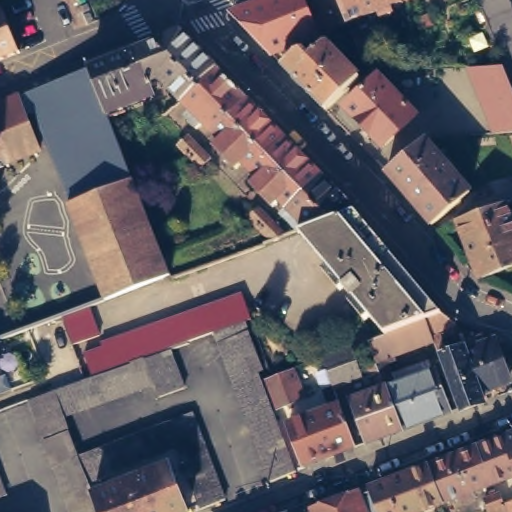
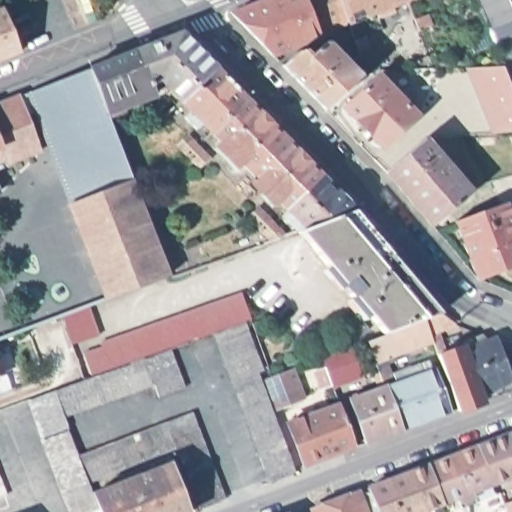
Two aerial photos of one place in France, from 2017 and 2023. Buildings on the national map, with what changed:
unchanged [(230,12),(231,10),(258,0),(306,0),(320,31),(293,41),(295,44),(290,46),(288,43),(272,50),(253,30),(230,12)]
unchanged [(340,0),(348,18),(330,24),(331,26),(320,31),(306,0),(340,0)]
unchanged [(394,8),(380,13),(377,6),(348,18),(340,0),(394,0),(392,1),(394,8)]
unchanged [(480,0),(510,0),(512,5),(512,83),(503,61),(480,0)]
unchanged [(8,11),(24,53),(0,62),(0,14),(8,11)]
unchanged [(415,19),(426,14),(431,26),(420,31),(415,19)]
unchanged [(181,34),(216,68),(181,101),(159,79),(150,82),(155,95),(107,114),(90,71),(181,34)]
unchanged [(355,40),(365,36),(371,52),(360,56),(355,40)]
unchanged [(283,61),(296,46),(303,45),(307,51),(323,38),(326,38),(333,44),(360,73),(326,105),(283,61)]
unchanged [(503,61),(512,83),(512,126),(494,128),(469,63),(503,61)]
unchanged [(247,100),(213,133),(203,122),(197,129),(185,118),(191,111),(181,101),(216,68),(247,100)]
unchanged [(386,148),(350,106),(378,76),(389,88),(395,82),(413,102),(408,108),(416,116),(386,148)]
unchanged [(20,100),(40,152),(0,168),(0,107),(20,100)]
unchanged [(215,147),(221,141),(213,133),(247,100),(285,138),(250,171),(244,163),(236,169),(215,147)]
unchanged [(168,115),(179,128),(170,136),(155,119),(168,115)]
unchanged [(200,168),(189,156),(178,146),(188,137),(200,147),(209,158),(200,168)]
unchanged [(288,210),(280,201),(273,207),(252,186),(258,180),(250,171),(285,138),(320,175),(288,210)]
unchanged [(424,139),(425,141),(450,169),(454,174),(459,180),(470,193),(432,225),(387,173),(424,139)]
unchanged [(211,177),(220,169),(236,185),(248,198),(239,206),(225,191),(211,177)]
unchanged [(299,232),(297,232),(282,216),(288,210),(320,175),(355,211),(299,232)]
unchanged [(67,205),(134,179),(150,222),(164,256),(170,275),(105,301),(67,205)]
unchanged [(476,202),(473,199),(488,188),(498,199),(472,214),(469,207),(476,202)]
unchanged [(505,203),(512,219),(512,267),(479,280),(455,221),(472,214),(505,203)]
unchanged [(249,218),(259,209),(273,223),(283,234),(271,240),(252,221),(249,218)]
unchanged [(367,342),(383,335),(299,232),(355,211),(441,313),(457,325),(438,331),(443,342),(436,342),(433,340),(375,362),(367,342)]
unchanged [(237,242),(258,234),(262,245),(240,253),(237,242)]
unchanged [(170,350),(143,360),(92,376),(84,354),(101,348),(101,343),(242,293),(251,320),(246,321),(215,332),(170,350)]
unchanged [(62,317),(90,307),(100,336),(72,345),(62,317)]
unchanged [(215,332),(246,321),(249,331),(264,369),(258,371),(263,382),(273,411),(295,470),(296,472),(271,482),(215,332)]
unchanged [(512,381),(485,391),(481,393),(465,352),(463,346),(468,344),(470,350),(496,340),(512,381)]
unchanged [(443,342),(447,354),(465,352),(481,393),(485,402),(460,412),(458,409),(439,355),(436,344),(443,342)]
unchanged [(323,358),(350,348),(360,377),(333,386),(322,390),(316,375),(326,371),(323,358)]
unchanged [(185,388),(159,398),(153,385),(143,360),(170,350),(185,388)]
unchanged [(55,391),(84,379),(92,376),(143,360),(153,385),(65,416),(55,391)]
unchanged [(370,377),(365,366),(375,362),(379,373),(380,376),(392,371),(393,375),(412,369),(416,377),(435,370),(450,412),(402,430),(365,443),(350,401),(381,390),(375,375),(370,377)]
unchanged [(275,410),(266,384),(294,374),(305,400),(275,410)]
unchanged [(43,438),(30,400),(45,394),(55,391),(65,416),(69,429),(43,438)]
unchanged [(288,424),(332,407),(340,404),(356,446),(304,466),(288,424)]
unchanged [(166,423),(192,412),(226,500),(200,510),(175,448),(166,423)]
unchanged [(79,456),(166,423),(175,448),(88,482),(79,456)]
unchanged [(491,485),(478,447),(512,434),(512,476),(494,484),(491,485)]
unchanged [(491,485),(470,493),(472,498),(460,503),(458,498),(443,503),(429,466),(478,447),(491,485)]
unchanged [(93,495),(100,512),(71,512),(53,466),(79,456),(88,482),(93,495)]
unchanged [(170,465),(188,512),(100,512),(93,495),(170,465)]
unchanged [(443,503),(420,512),(375,512),(367,493),(368,489),(429,466),(443,503)]
unchanged [(312,510),(358,492),(360,496),(367,493),(375,512),(313,512),(312,510)]
unchanged [(489,511),(485,499),(497,494),(500,493),(504,503),(512,500),(512,512),(489,512),(489,511)]

